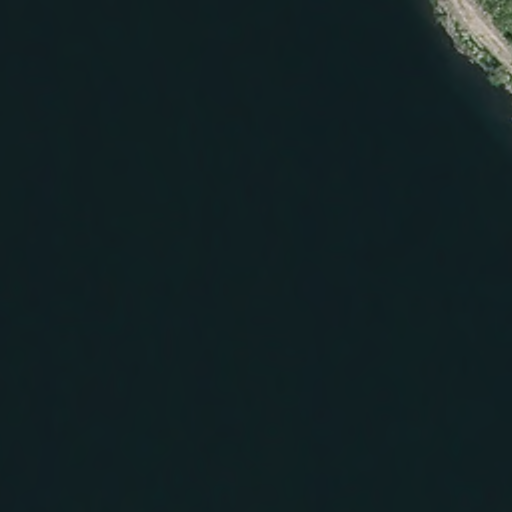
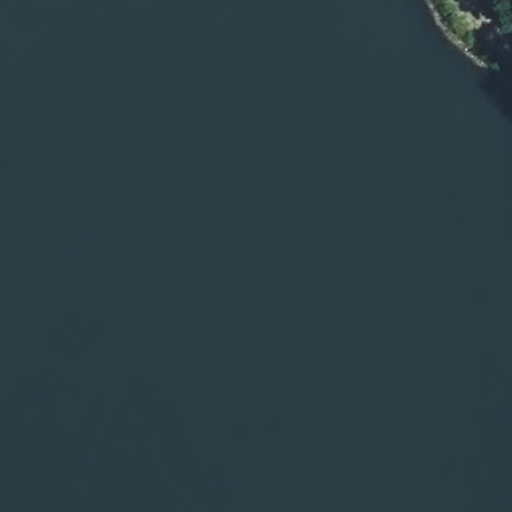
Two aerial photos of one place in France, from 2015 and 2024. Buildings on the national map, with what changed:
[]

